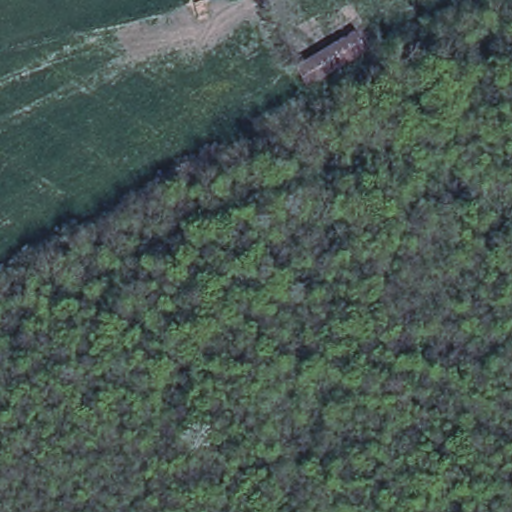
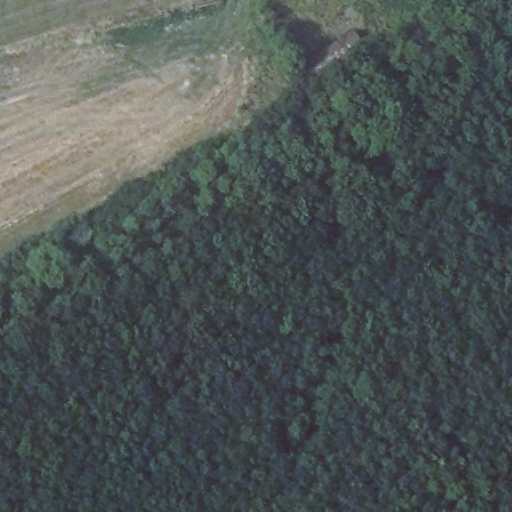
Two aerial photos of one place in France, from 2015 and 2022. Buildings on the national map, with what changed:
unchanged [(310,89),(299,71),(357,37),(368,56),(310,89)]

